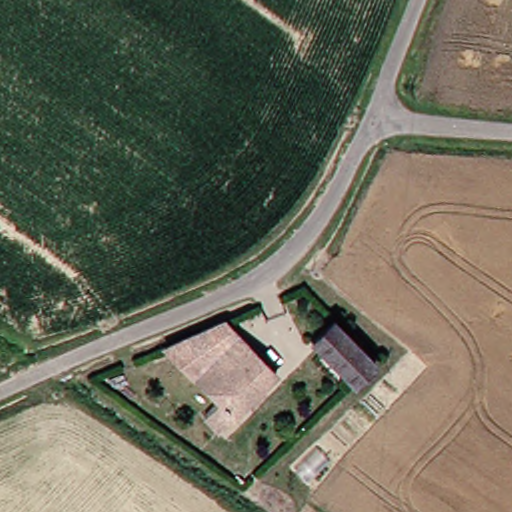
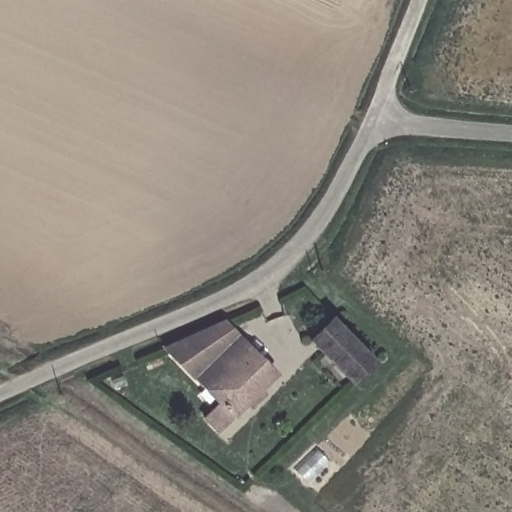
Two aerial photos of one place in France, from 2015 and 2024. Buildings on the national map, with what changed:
unchanged [(213,427),(199,416),(213,402),(153,342),(212,322),(264,374),(213,427)]
unchanged [(367,366),(349,387),(329,369),(300,343),(320,322),(367,366)]

